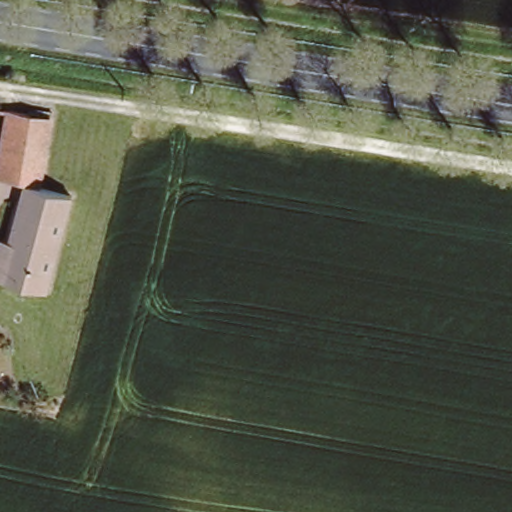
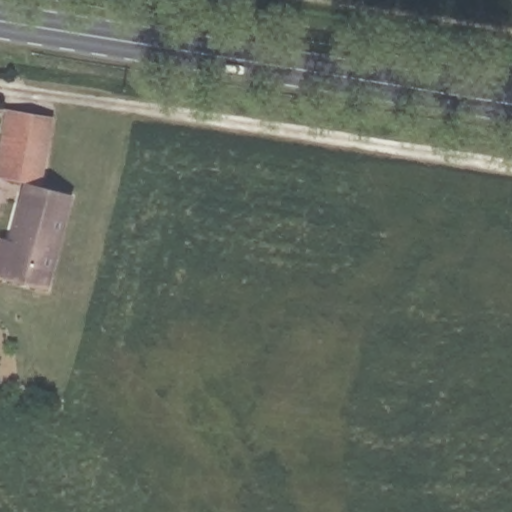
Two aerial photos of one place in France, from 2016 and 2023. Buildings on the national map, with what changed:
unchanged [(0,177),(0,160),(9,111),(32,115),(22,181),(0,177)]
unchanged [(32,115),(51,118),(41,184),(22,181),(32,115)]
unchanged [(11,237),(29,184),(70,196),(42,289),(0,276),(0,235),(11,237)]

